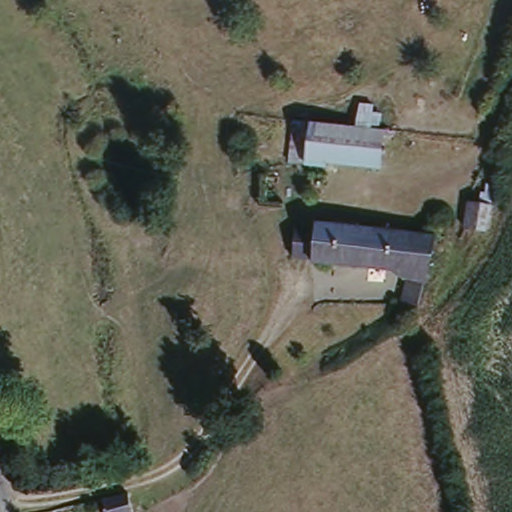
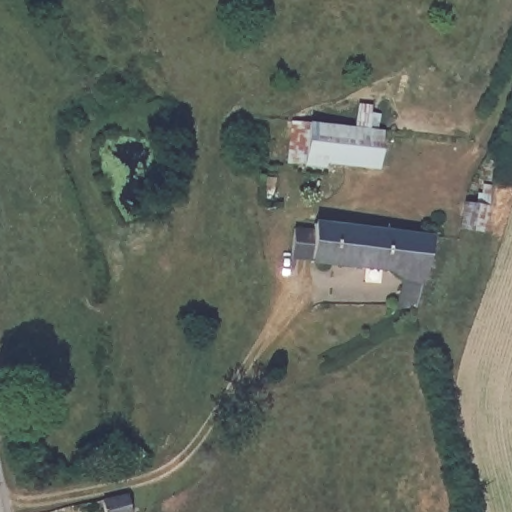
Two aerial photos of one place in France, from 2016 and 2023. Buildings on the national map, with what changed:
unchanged [(290,115),(309,116),(378,125),(374,162),(320,155),(319,162),(284,158),(287,136),(290,115)]
unchanged [(463,197),(475,198),(477,187),(490,190),(484,227),(459,223),(463,197)]
unchanged [(406,285),(390,273),(313,266),(317,226),(438,241),(416,312),(398,311),(406,285)]
unchanged [(126,490),(130,512),(104,512),(101,497),(126,490)]

